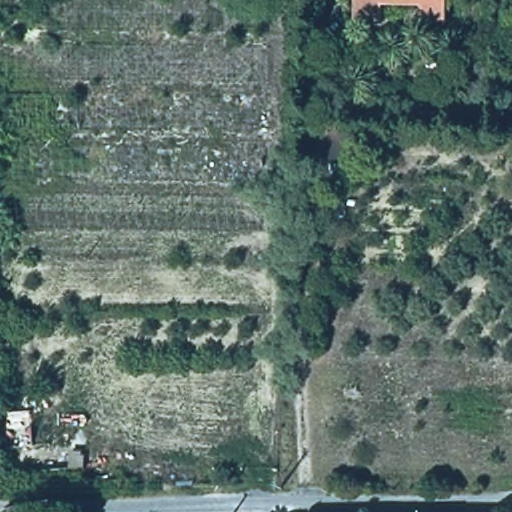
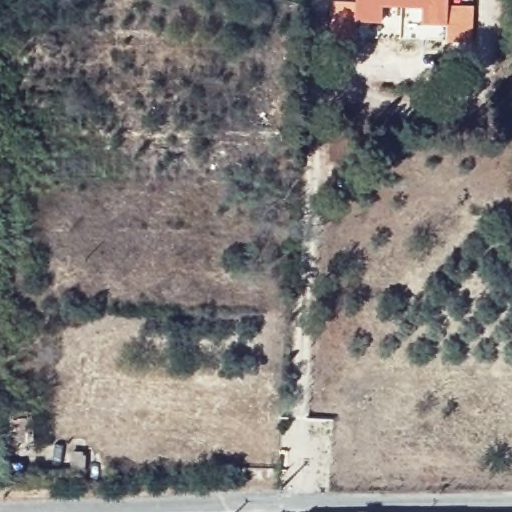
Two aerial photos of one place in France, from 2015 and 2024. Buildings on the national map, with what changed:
unchanged [(356,0),(448,0),(447,25),(422,24),(422,7),(382,5),(381,22),(355,21),(356,0)]

